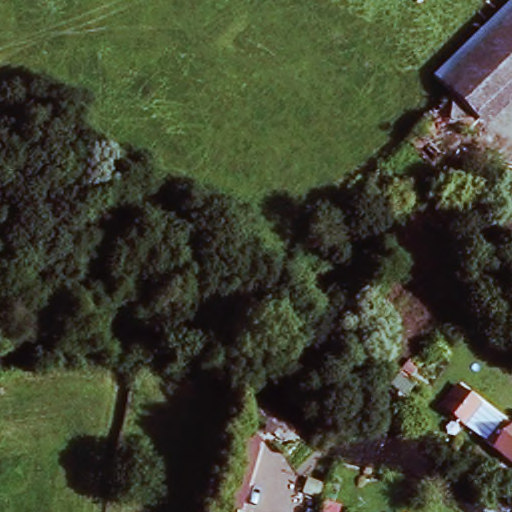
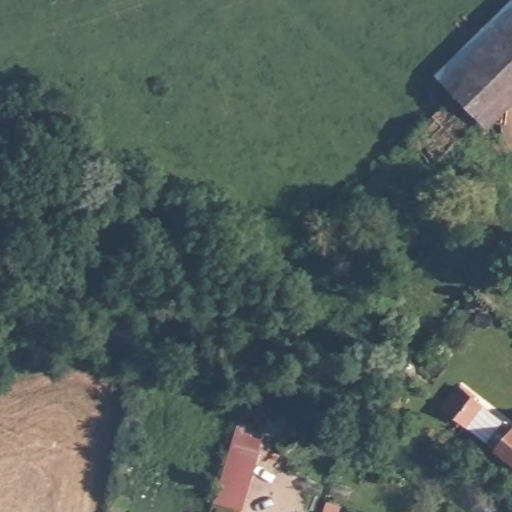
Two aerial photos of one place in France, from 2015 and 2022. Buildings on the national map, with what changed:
unchanged [(450,92),(444,83),(512,11),(512,105),(488,129),(481,121),(434,170),(408,138),(450,92)]
unchanged [(440,408),(460,382),(484,405),(468,430),(440,408)]
unchanged [(512,422),(512,463),(479,437),(504,415),(512,422)]
new [(238,423),(251,426),(249,437),(261,440),(243,512),(214,502),(238,423)]

